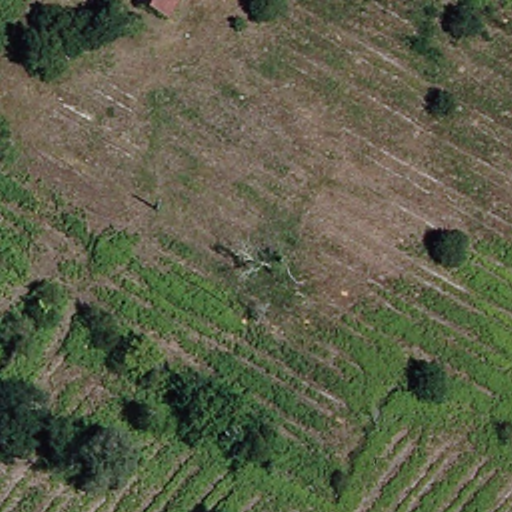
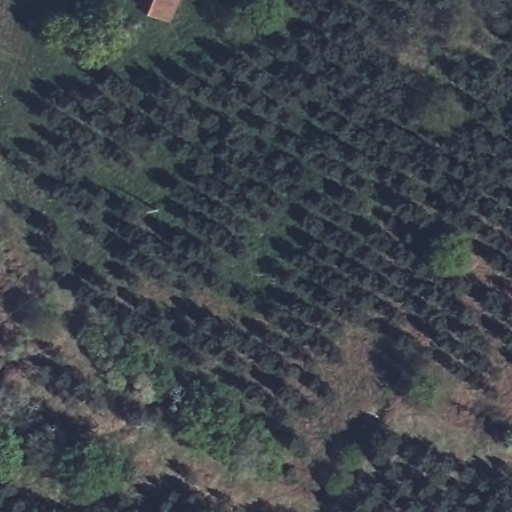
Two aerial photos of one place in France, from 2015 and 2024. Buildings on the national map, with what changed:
unchanged [(139,0),(175,0),(169,15),(138,1),(139,0)]

